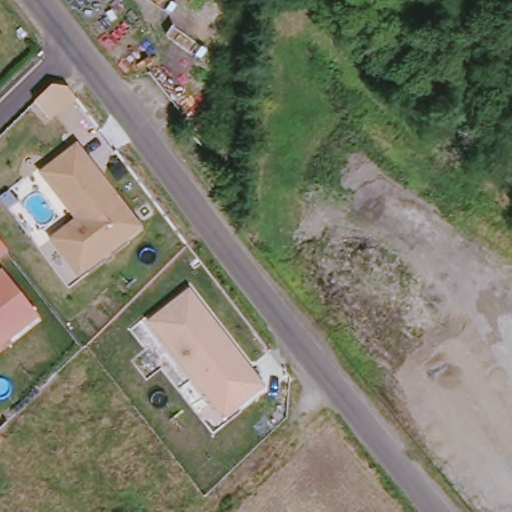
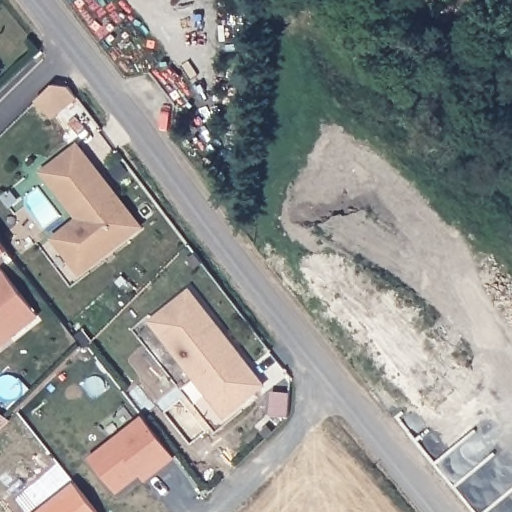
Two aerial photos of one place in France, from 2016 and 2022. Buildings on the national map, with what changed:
unchanged [(143,227),(80,275),(53,236),(75,220),(40,174),(79,145),(143,227)]
new [(7,251),(0,256),(0,242),(7,251)]
unchanged [(0,350),(0,276),(5,272),(38,319),(0,350)]
unchanged [(224,421),(149,322),(191,290),(267,388),(224,421)]
new [(142,416),(174,457),(145,481),(142,476),(117,494),(88,457),(142,416)]

